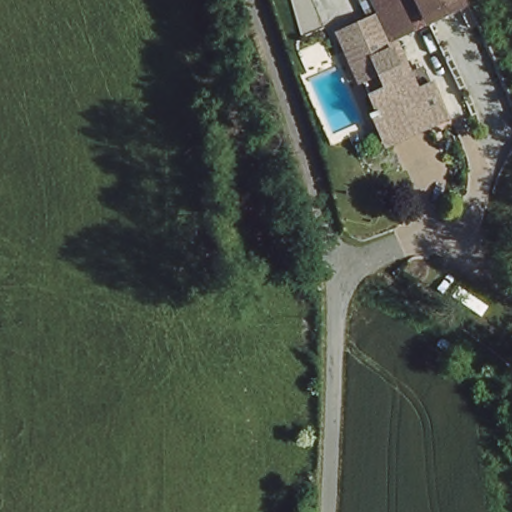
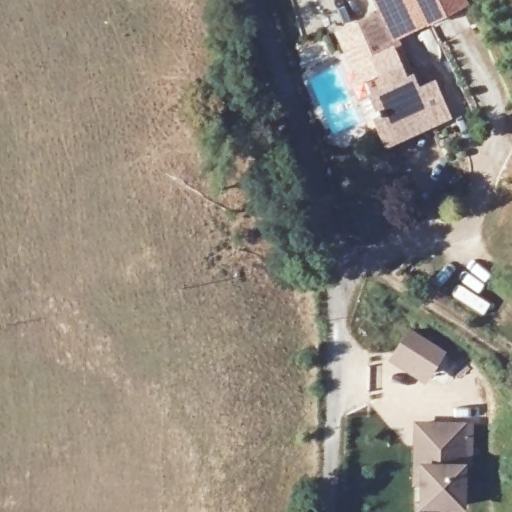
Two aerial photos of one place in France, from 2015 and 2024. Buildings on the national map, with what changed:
unchanged [(361,80),(353,79),(338,30),(378,16),(373,0),(457,0),(460,10),(388,34),(411,89),(427,84),(439,117),(418,125),(385,138),(381,128),(361,80)]
new [(412,488),(412,421),(467,423),(466,464),(465,510),(417,509),(417,488),(412,488)]

